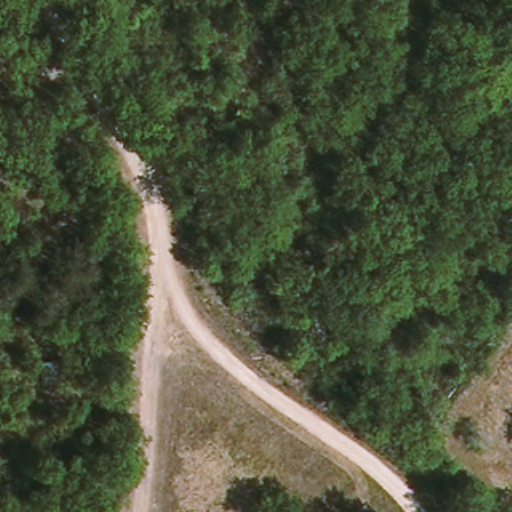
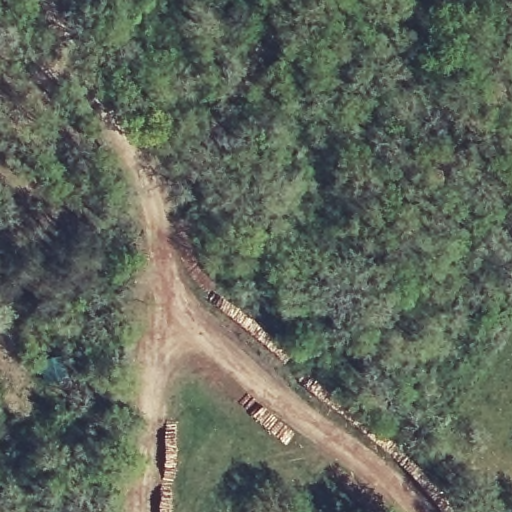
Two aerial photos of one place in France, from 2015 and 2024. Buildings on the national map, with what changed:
unchanged [(37,433),(16,437),(12,417),(32,413),(37,433)]

